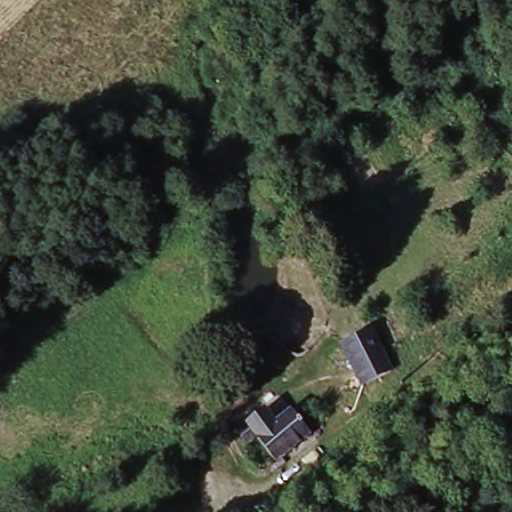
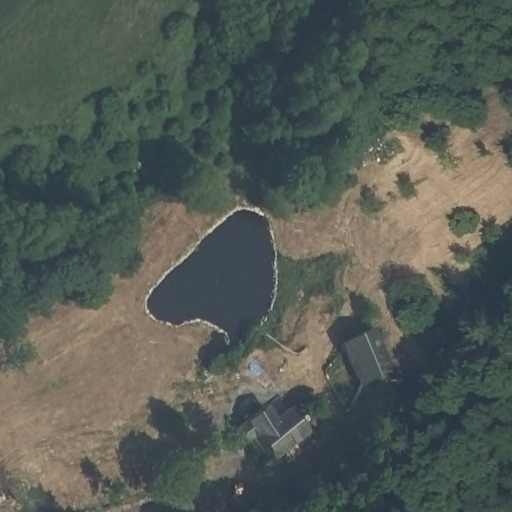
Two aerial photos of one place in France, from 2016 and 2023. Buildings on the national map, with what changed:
unchanged [(374,327),(403,385),(365,402),(340,345),(374,327)]
unchanged [(269,405),(281,421),(296,414),(316,447),(278,470),(257,438),(247,443),(236,424),(269,405)]

